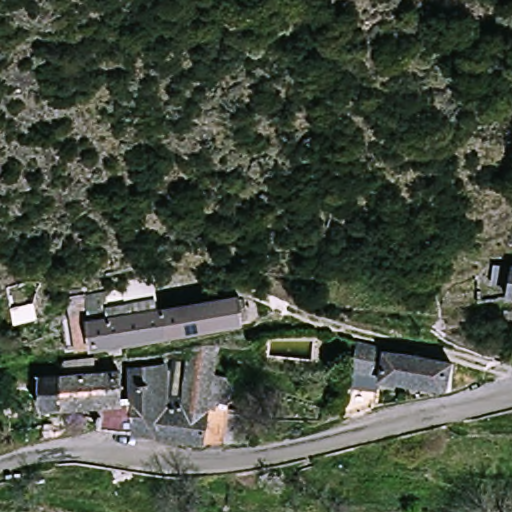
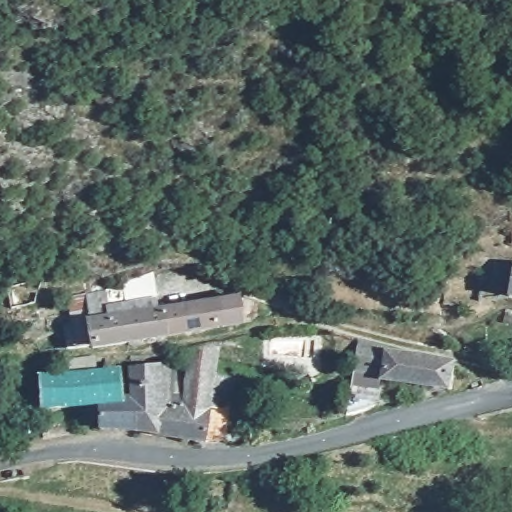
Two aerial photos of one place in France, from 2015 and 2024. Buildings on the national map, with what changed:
unchanged [(512,263),(512,299),(510,299),(512,263)]
unchanged [(95,351),(74,352),(70,313),(67,291),(156,275),(164,306),(243,293),(250,325),(95,351)]
unchanged [(452,390),(381,382),(378,403),(348,412),(360,337),(383,342),(383,347),(457,361),(452,390)]
unchanged [(209,444),(160,435),(101,434),(100,411),(43,413),(42,373),(124,366),(124,396),(133,396),(133,366),(171,361),(175,402),(185,402),(194,341),(224,344),(209,444)]

